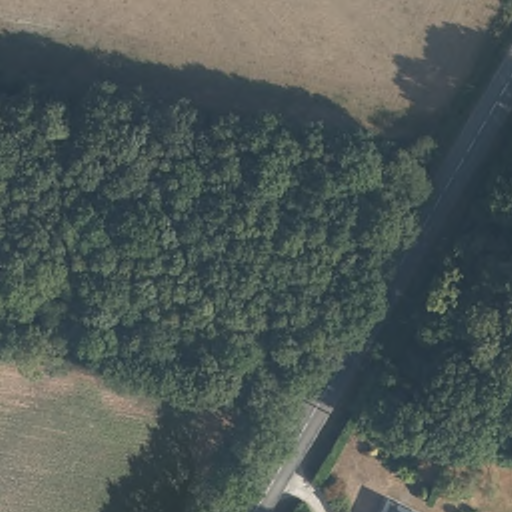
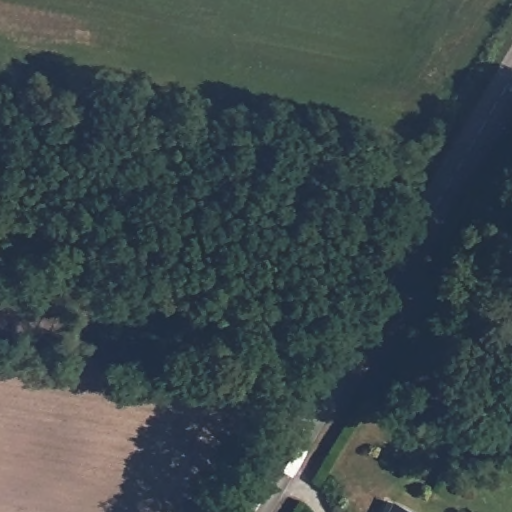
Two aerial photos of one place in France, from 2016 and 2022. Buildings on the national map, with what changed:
unchanged [(386,512),(394,498),(421,512),(386,512)]

